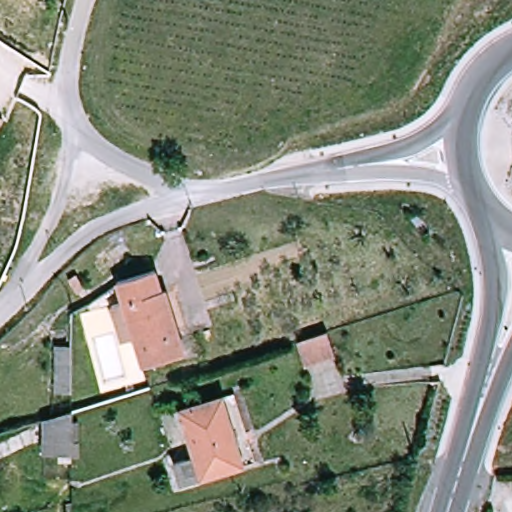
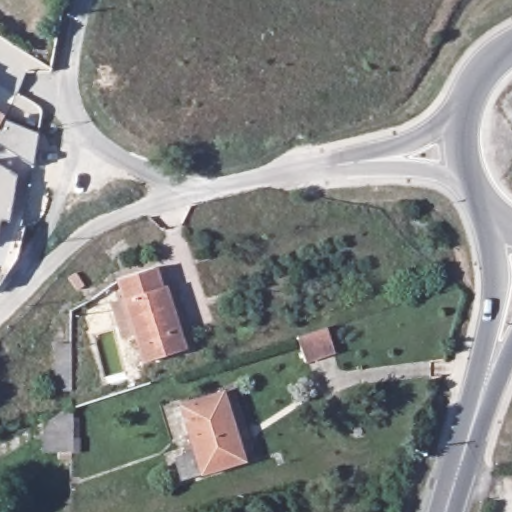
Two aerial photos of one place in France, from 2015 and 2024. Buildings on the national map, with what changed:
unchanged [(0,124),(0,110),(7,114),(0,124)]
new [(38,135),(32,167),(0,147),(0,124),(2,121),(38,135)]
new [(17,177),(8,222),(0,220),(0,166),(17,177)]
unchanged [(110,306),(122,302),(115,282),(153,270),(167,315),(171,313),(184,352),(142,365),(133,336),(122,340),(110,306)]
unchanged [(339,354),(310,363),(302,338),(331,328),(339,354)]
unchanged [(72,392),(62,391),(62,381),(56,381),(57,345),(75,345),(72,392)]
unchanged [(179,455),(198,450),(189,417),(181,420),(177,407),(185,404),(184,402),(227,389),(247,459),(205,472),(185,477),(179,455)]
unchanged [(73,408),(72,452),(42,451),(42,418),(73,408)]

